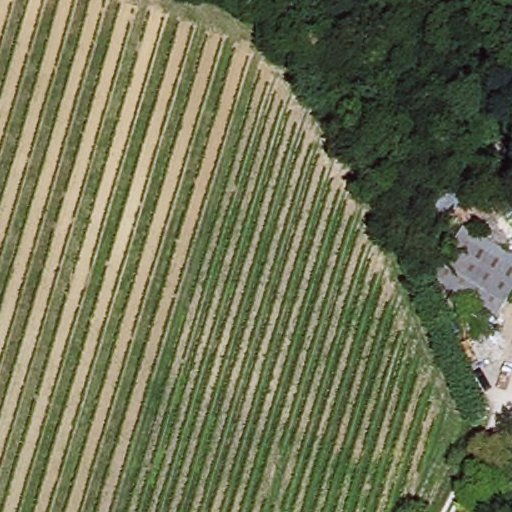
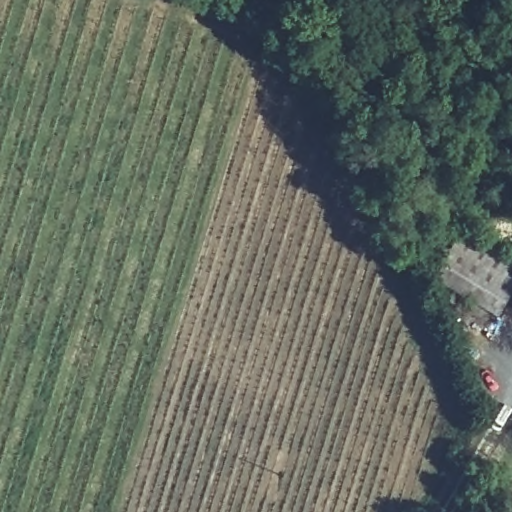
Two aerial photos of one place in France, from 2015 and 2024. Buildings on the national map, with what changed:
unchanged [(492,317),(481,311),(476,320),(463,313),(469,303),(460,298),(454,308),(443,302),(449,292),(429,280),(459,230),(512,259),(512,280),(492,317)]

